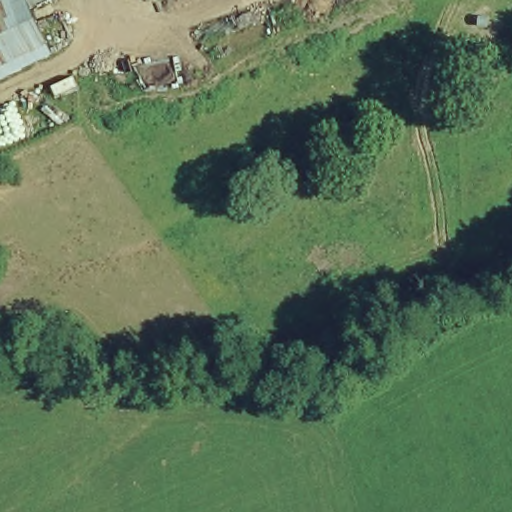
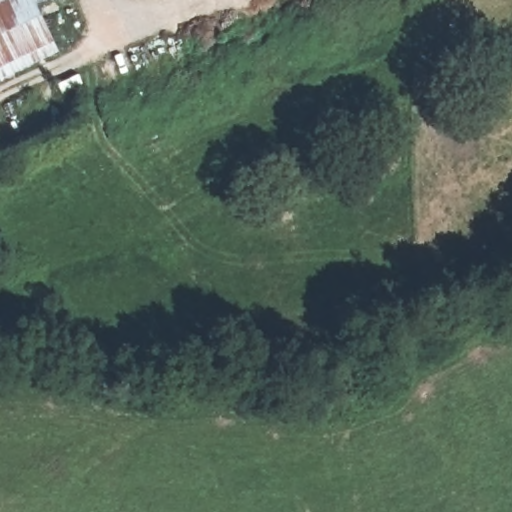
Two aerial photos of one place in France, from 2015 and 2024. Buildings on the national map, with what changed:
unchanged [(0,78),(0,0),(33,0),(58,52),(0,78)]

